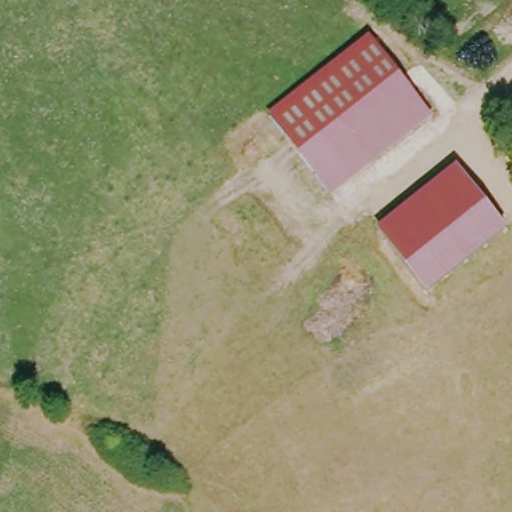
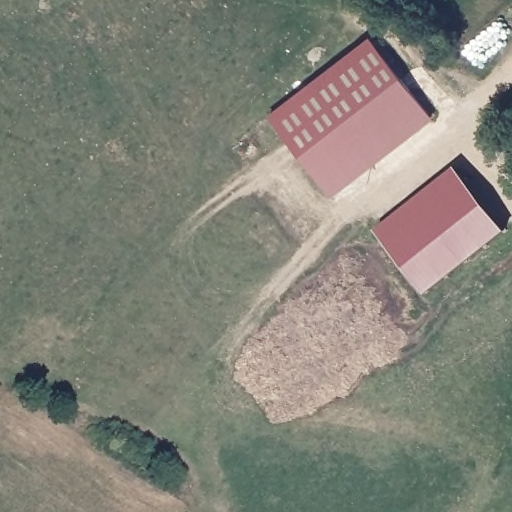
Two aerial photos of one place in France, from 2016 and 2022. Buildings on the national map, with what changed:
unchanged [(271,115),(365,34),(431,120),(329,195),(271,115)]
unchanged [(508,233),(429,293),(376,229),(457,166),(508,233)]

